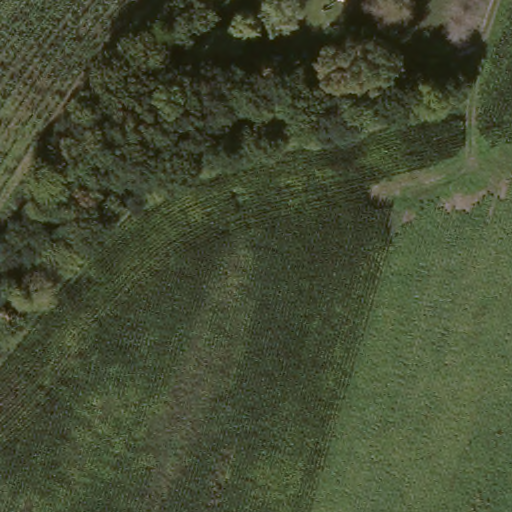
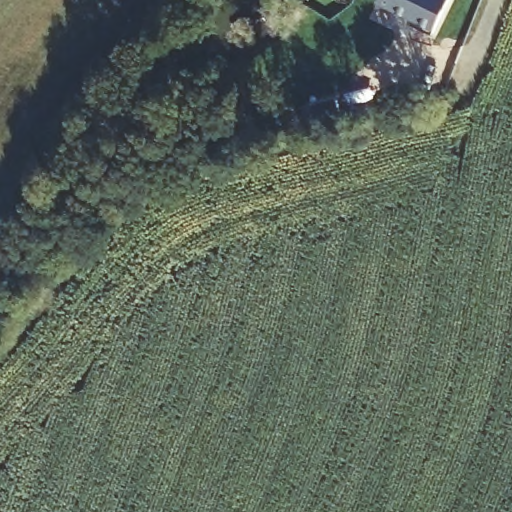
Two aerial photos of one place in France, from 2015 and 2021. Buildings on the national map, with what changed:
new [(411,23),(414,18),(379,0),(448,0),(431,34),(411,23)]

